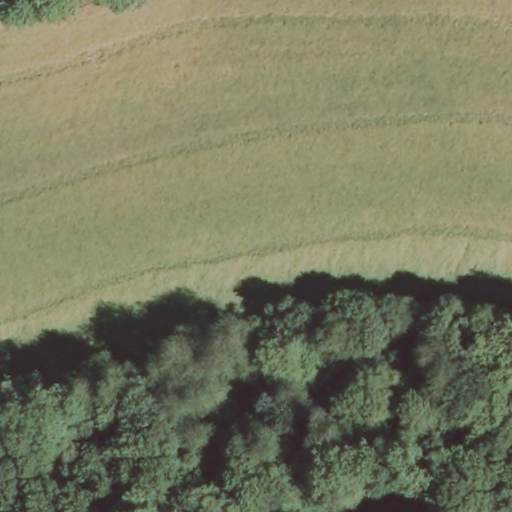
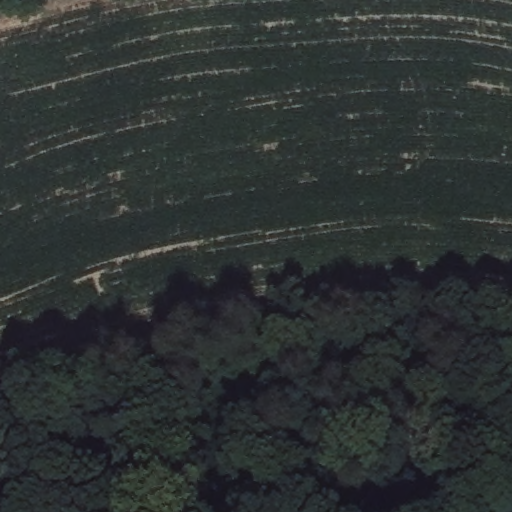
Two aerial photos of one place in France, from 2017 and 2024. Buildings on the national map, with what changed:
unchanged [(125,415),(129,432),(114,436),(108,438),(104,418),(115,417),(125,415)]

